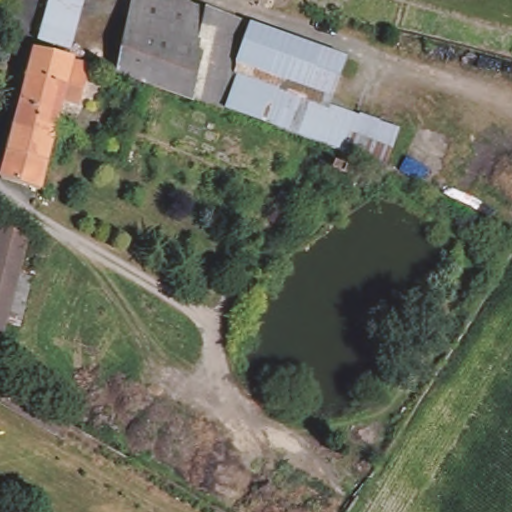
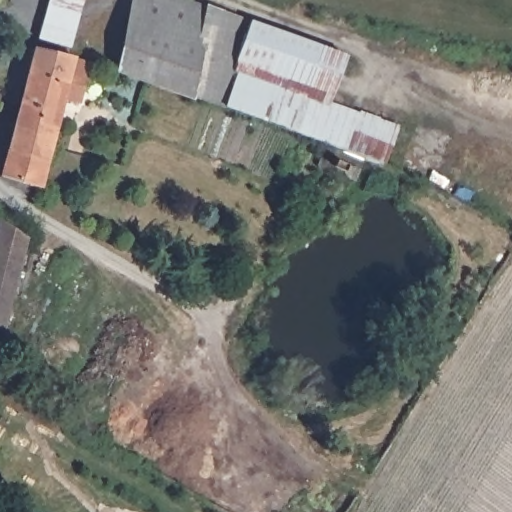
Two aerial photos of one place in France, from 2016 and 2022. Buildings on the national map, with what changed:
unchanged [(36,48),(38,49),(51,0),(86,0),(72,57),(79,59),(97,64),(83,105),(68,102),(47,190),(2,178),(36,48)]
unchanged [(162,0),(244,25),(217,107),(173,94),(107,73),(130,0),(162,0)]
unchanged [(271,124),(217,107),(244,25),(245,22),(290,36),(351,56),(338,96),(323,141),(273,125),(271,124)]
unchanged [(338,96),(390,114),(387,122),(401,127),(389,165),(323,141),(338,96)]
unchanged [(14,298),(0,362),(0,228),(27,235),(14,298)]
unchanged [(0,401),(0,382),(67,422),(59,435),(0,401)]

